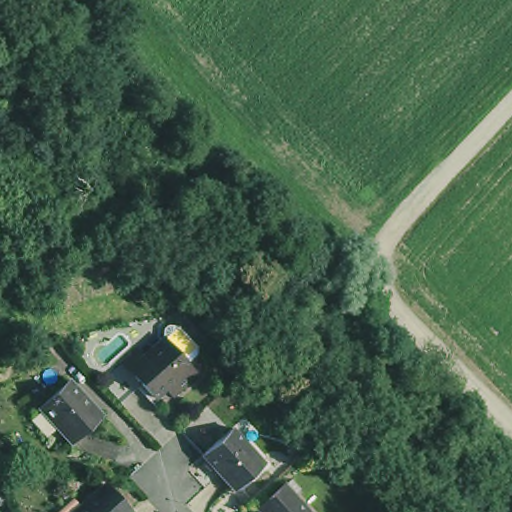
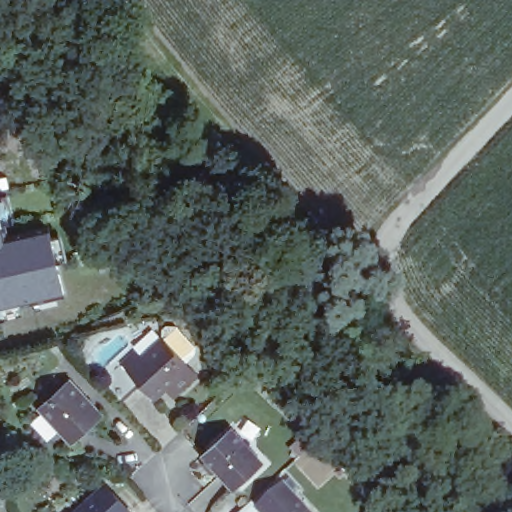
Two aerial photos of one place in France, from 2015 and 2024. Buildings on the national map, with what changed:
new [(23,306),(25,315),(0,321),(0,197),(10,196),(21,235),(53,228),(70,296),(23,306)]
unchanged [(132,350),(140,356),(161,337),(163,340),(173,331),(174,330),(175,331),(177,331),(182,332),(197,350),(200,353),(200,354),(201,355),(202,361),(192,370),(195,373),(170,395),(162,388),(152,397),(140,384),(117,404),(97,382),(120,361),(132,350)]
unchanged [(43,407),(73,380),(104,414),(73,441),(43,407)]
unchanged [(260,458),(230,485),(198,450),(230,423),(260,458)]
unchanged [(80,496),(102,477),(124,501),(128,506),(121,512),(68,512),(83,498),(80,496)]
unchanged [(265,512),(260,507),(285,484),(311,512),(265,512)]

